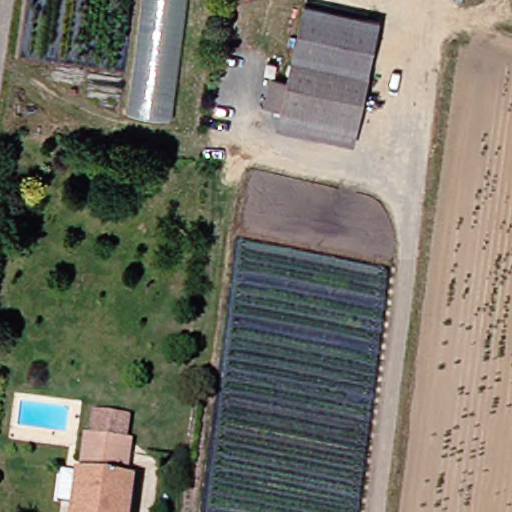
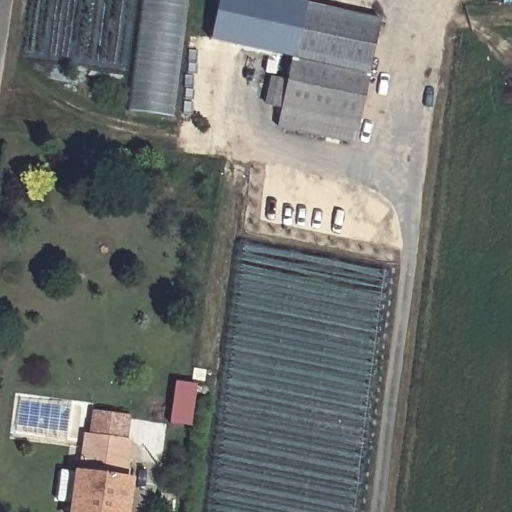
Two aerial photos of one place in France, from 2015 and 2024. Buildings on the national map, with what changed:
unchanged [(168,121),(124,114),(139,0),(184,0),(168,121)]
new [(220,0),(279,0),(300,5),(289,57),(211,39),(220,0)]
unchanged [(375,21),(354,124),(278,107),(261,104),(267,79),(283,82),(300,5),(375,21)]
unchanged [(354,124),(350,144),(273,127),(278,107),(354,124)]
unchanged [(121,485),(127,485),(123,512),(69,512),(73,478),(75,478),(80,439),(126,445),(121,485)]

